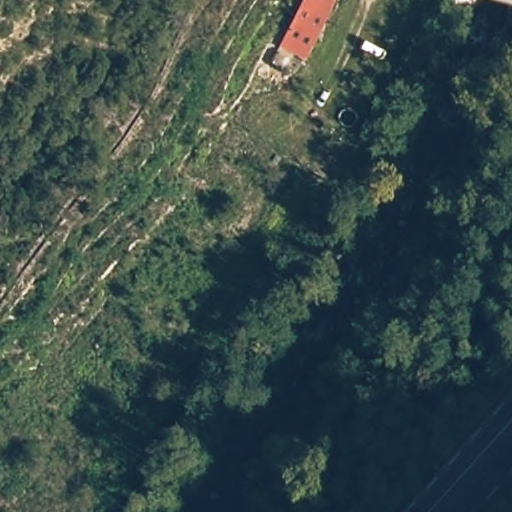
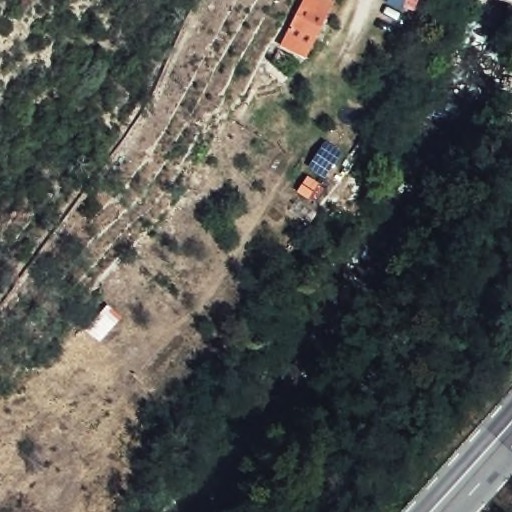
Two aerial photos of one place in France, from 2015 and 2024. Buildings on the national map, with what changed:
unchanged [(336,0),(306,56),(279,44),(301,0),(336,0)]

